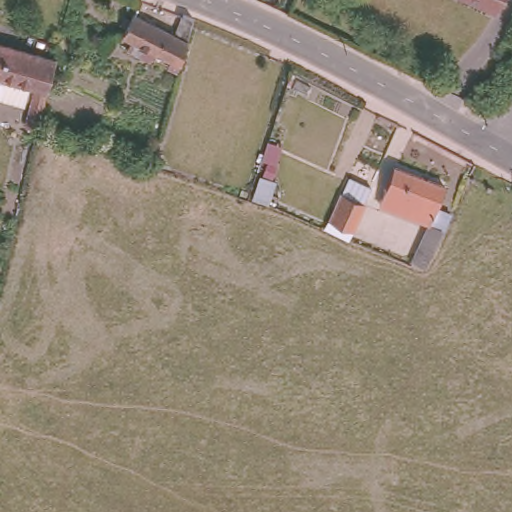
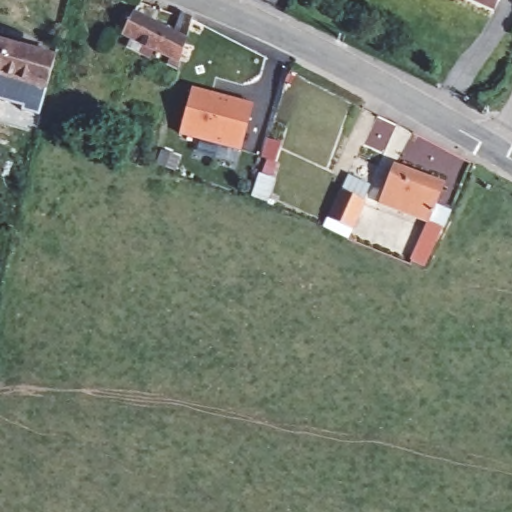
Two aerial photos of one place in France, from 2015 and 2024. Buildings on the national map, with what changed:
unchanged [(496,0),(493,5),(483,0),(496,0)]
unchanged [(160,51),(155,61),(135,51),(139,42),(130,38),(138,14),(180,30),(185,12),(197,17),(185,64),(160,51)]
unchanged [(27,130),(40,79),(35,77),(26,106),(0,98),(0,68),(0,36),(57,51),(50,82),(40,125),(37,132),(27,130)]
new [(179,135),(192,87),(254,104),(241,151),(179,135)]
unchanged [(450,214),(428,271),(413,266),(432,221),(378,201),(393,165),(444,184),(435,209),(450,214)]
unchanged [(327,220),(339,193),(363,203),(352,230),(327,220)]

